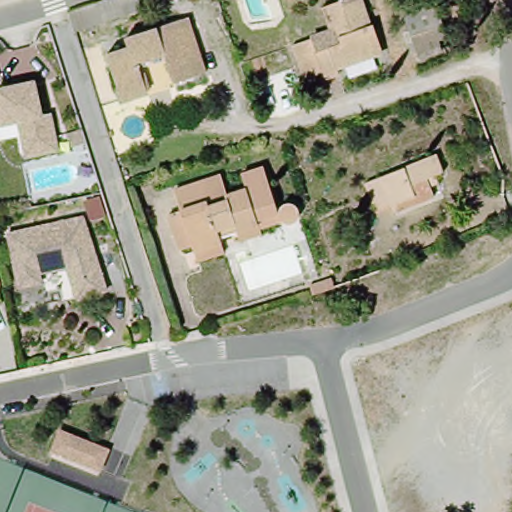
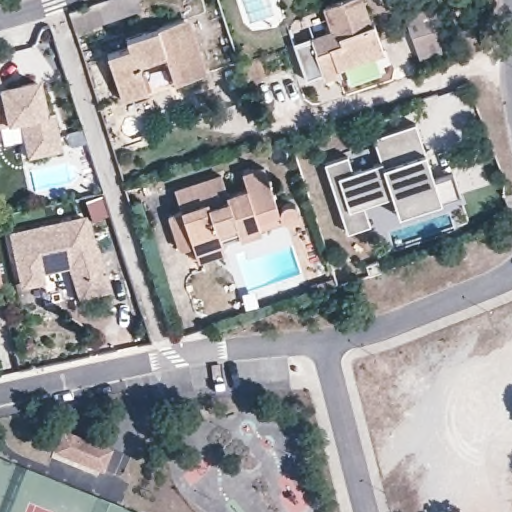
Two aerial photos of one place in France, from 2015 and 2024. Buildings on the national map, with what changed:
unchanged [(78,30),(71,12),(111,0),(141,0),(144,12),(78,30)]
unchanged [(334,78),(320,82),(319,78),(303,83),(291,49),(331,36),(323,10),(356,0),(366,31),(368,30),(377,57),(331,72),(334,78)]
unchanged [(435,45),(429,46),(430,57),(405,65),(390,19),(415,10),(435,45)]
unchanged [(175,85),(168,62),(141,69),(148,95),(125,100),(110,52),(133,45),(130,35),(186,20),(205,77),(175,85)]
unchanged [(53,112),(60,150),(28,157),(20,120),(0,125),(0,95),(0,91),(0,87),(9,86),(37,80),(45,114),(53,112)]
new [(347,232),(326,164),(347,156),(353,172),(383,163),(374,137),(414,125),(424,155),(434,182),(454,175),(460,195),(441,202),(400,216),(393,195),(363,205),(370,225),(347,232)]
demolished [(434,185),(437,201),(442,216),(431,220),(422,215),(400,224),(395,207),(381,212),(370,182),(447,157),(454,177),(441,182),(434,185)]
unchanged [(241,247),(238,240),(216,246),(221,258),(195,265),(190,250),(176,254),(168,220),(183,216),(176,195),(223,181),(228,200),(254,194),(248,180),(274,171),(288,215),(299,211),(308,218),(310,227),(306,234),(294,236),(285,224),(262,232),(265,240),(241,247)]
unchanged [(107,293),(78,302),(63,252),(36,259),(41,280),(35,285),(25,286),(18,285),(9,235),(83,220),(107,293)]
unchanged [(0,287),(0,260),(5,286),(0,287)]
unchanged [(317,280),(327,277),(333,293),(325,296),(317,280)]
unchanged [(55,431),(101,450),(95,468),(48,450),(55,431)]

